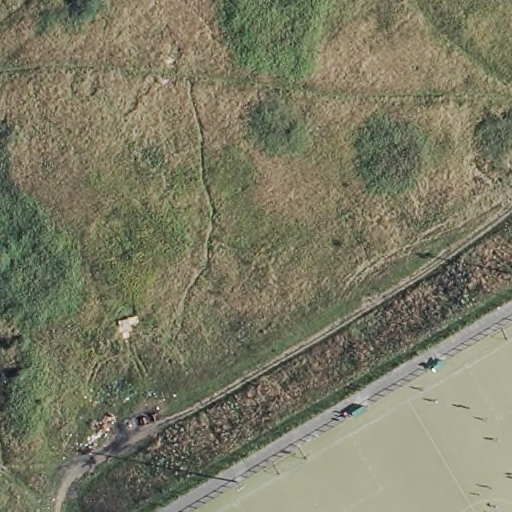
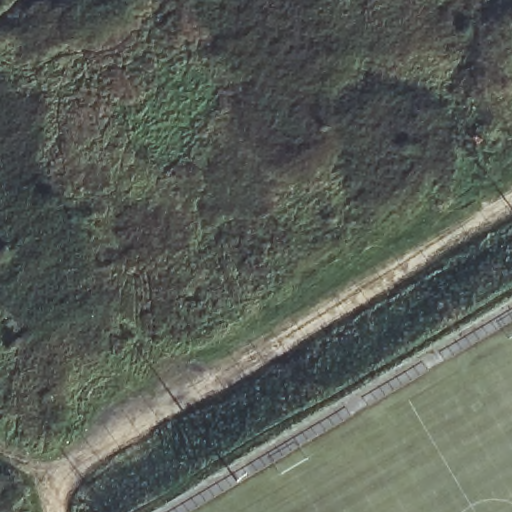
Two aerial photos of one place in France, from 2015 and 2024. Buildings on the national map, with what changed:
[]

